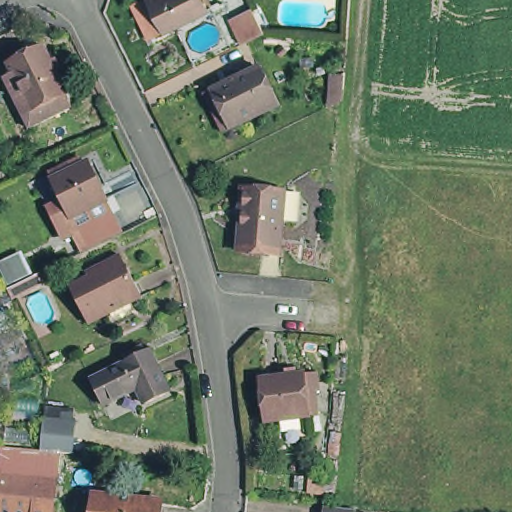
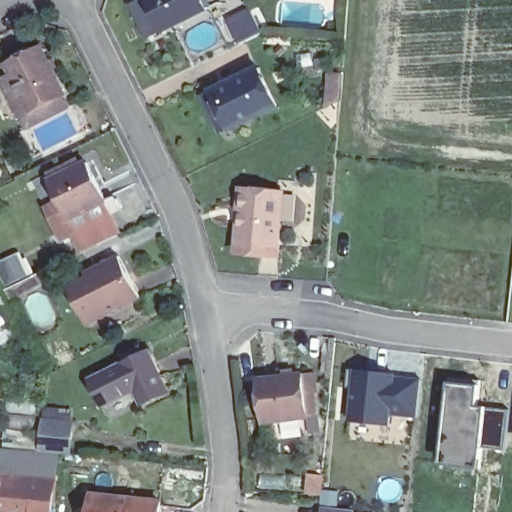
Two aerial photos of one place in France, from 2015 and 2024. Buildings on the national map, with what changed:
unchanged [(149,0),(214,0),(215,3),(176,22),(176,24),(165,30),(149,0)]
unchanged [(239,42),(227,20),(252,8),(263,30),(239,42)]
unchanged [(33,104),(15,67),(11,58),(46,40),(50,47),(56,44),(64,60),(57,63),(68,86),(33,104)]
unchanged [(211,90),(224,83),(267,63),(286,100),(242,121),(230,128),(211,90)]
unchanged [(76,99),(31,123),(5,71),(15,67),(33,104),(68,86),(76,99)]
unchanged [(341,86),(329,85),(330,71),(342,71),(341,86)]
unchanged [(91,255),(82,238),(64,247),(35,188),(77,166),(81,174),(52,188),(71,224),(107,206),(115,221),(124,239),(91,255)]
unchanged [(71,224),(52,188),(81,174),(91,169),(108,205),(107,206),(71,224)]
unchanged [(285,252),(240,248),(245,188),(289,191),(285,252)]
unchanged [(142,298),(89,326),(68,289),(87,279),(84,272),(102,263),(119,255),(142,298)]
unchanged [(0,324),(0,313),(5,322),(0,324)]
unchanged [(106,402),(92,376),(150,346),(172,386),(146,400),(113,417),(106,402)]
new [(425,372),(419,418),(391,416),(390,424),(344,420),(342,421),(347,366),(425,372)]
unchanged [(266,418),(260,375),(305,368),(317,367),(319,384),(315,384),(317,409),(310,411),(310,412),(266,418)]
new [(471,386),(469,408),(507,411),(504,445),(474,443),(472,467),(434,463),(441,383),(471,386)]
unchanged [(75,423),(72,453),(57,452),(42,450),(45,420),(75,423)]
unchanged [(0,476),(53,481),(52,493),(50,512),(0,512),(0,476)]
unchanged [(95,493),(162,499),(160,512),(93,512),(95,493)]

